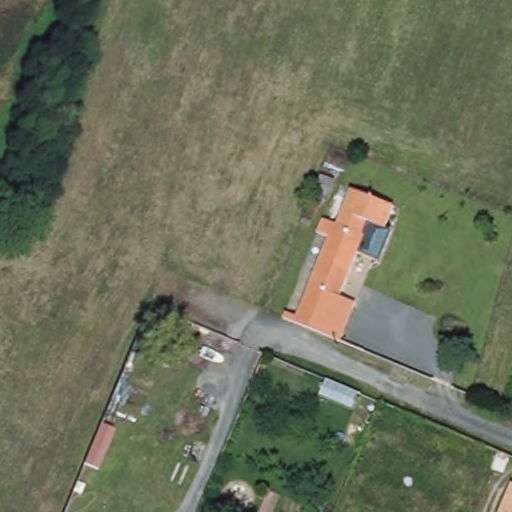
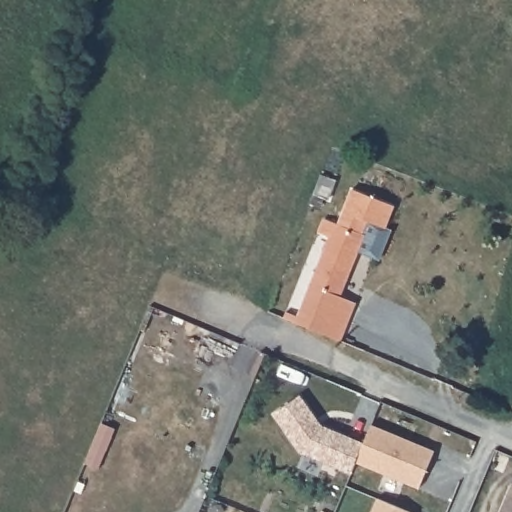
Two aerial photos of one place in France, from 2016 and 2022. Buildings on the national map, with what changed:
unchanged [(320,221),(332,225),(338,211),(347,188),(391,205),(382,227),(364,220),(358,234),(362,235),(349,267),(318,254),(324,239),(314,235),(320,221)]
unchanged [(337,297),(353,304),(338,343),(291,323),(318,254),(349,267),(337,297)]
new [(351,474),(300,452),(272,414),(300,395),(322,425),(364,443),(356,463),(351,474)]
new [(372,426),(435,452),(420,489),(356,463),(372,426)]
unchanged [(512,486),(512,512),(496,512),(507,484),(512,486)]
new [(378,500),(408,512),(373,512),(378,500)]

